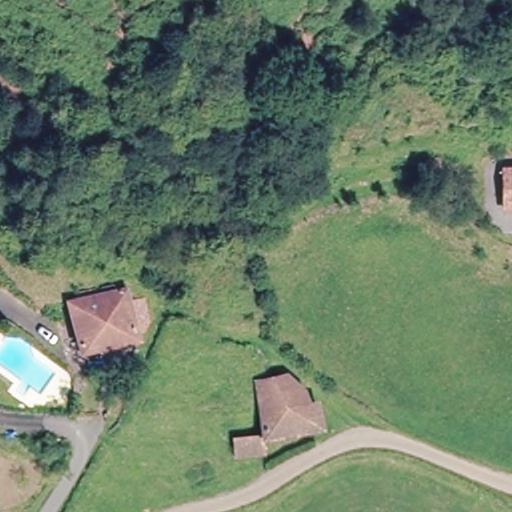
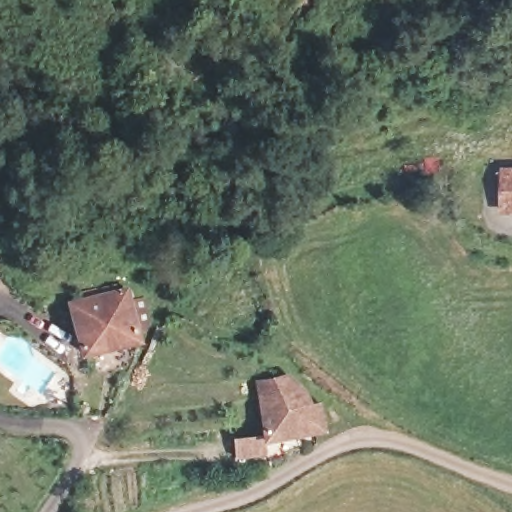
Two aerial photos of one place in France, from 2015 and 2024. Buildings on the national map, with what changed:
unchanged [(431,177),(410,178),(408,164),(430,162),(431,177)]
unchanged [(505,219),(506,179),(512,178),(512,219),(505,219)]
unchanged [(61,300),(69,299),(69,292),(94,287),(95,290),(114,286),(116,293),(130,289),(137,315),(132,326),(125,328),(127,335),(71,348),(61,300)]
unchanged [(262,440),(260,436),(258,407),(258,382),(271,377),(286,376),(307,396),(307,406),(317,406),(319,439),(262,440)]
unchanged [(258,436),(258,449),(235,448),(235,435),(258,436)]

